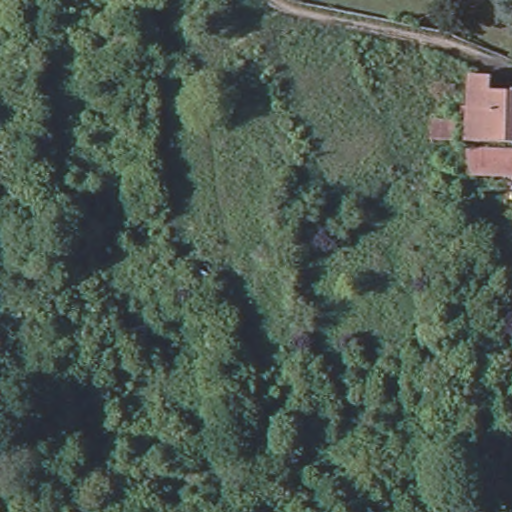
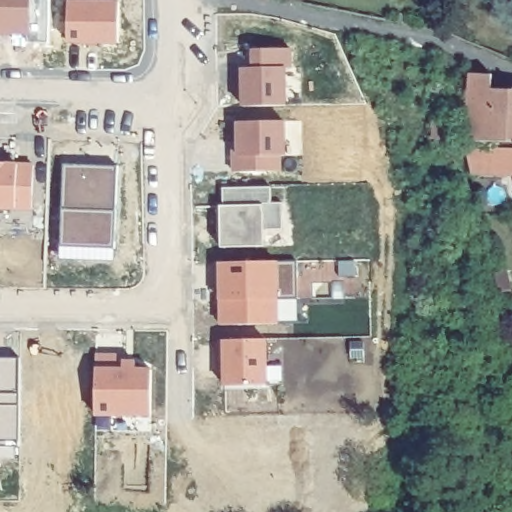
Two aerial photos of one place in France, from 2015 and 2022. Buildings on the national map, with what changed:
new [(46,41),(24,41),(24,33),(0,33),(0,0),(48,0),(46,41)]
new [(119,48),(99,48),(99,49),(83,49),(83,47),(68,47),(69,7),(120,9),(119,48)]
new [(292,56),(292,75),(286,75),(287,112),(244,113),(243,90),(249,91),(248,75),(255,75),(254,56),(292,56)]
unchanged [(472,143),(470,82),(490,80),(491,94),(493,144),(472,143)]
unchanged [(493,144),(491,94),(512,93),(512,144),(493,144)]
new [(235,162),(240,162),(239,129),(286,128),(286,162),(281,162),(281,178),(235,179),(235,162)]
unchanged [(484,174),(485,165),(467,164),(464,151),(479,146),(512,148),(512,176),(484,174)]
new [(234,149),(240,148),(240,162),(235,162),(234,149)]
new [(34,172),(33,215),(0,214),(0,170),(6,171),(34,172)]
new [(61,266),(61,253),(64,171),(65,171),(65,173),(84,174),(118,175),(118,173),(119,173),(115,255),(115,268),(61,266)]
new [(222,238),(218,238),(218,213),(224,213),(224,195),(272,193),(273,210),(284,210),(284,236),(266,237),(266,253),(222,254),(222,238)]
new [(32,235),(0,234),(0,214),(33,215),(32,235)]
new [(221,288),(221,269),(299,268),(299,306),(279,306),(279,331),(222,332),(221,300),(221,288)]
new [(220,347),(266,346),(268,392),(226,393),(226,379),(221,379),(221,366),(220,347)]
new [(18,440),(0,440),(0,358),(18,358),(18,440)]
new [(125,362),(125,368),(136,369),(136,376),(153,377),(152,422),(96,421),(96,362),(125,362)]

